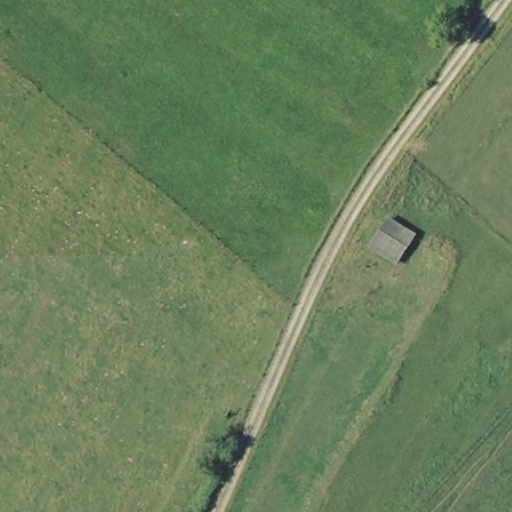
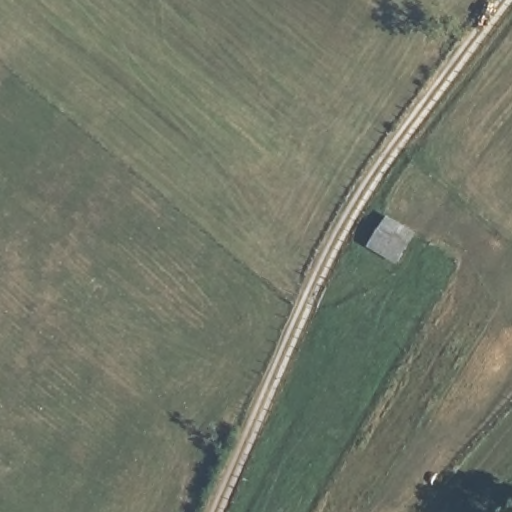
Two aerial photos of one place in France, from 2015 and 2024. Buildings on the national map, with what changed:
unchanged [(411,235),(392,265),(365,247),(386,217),(411,235)]

